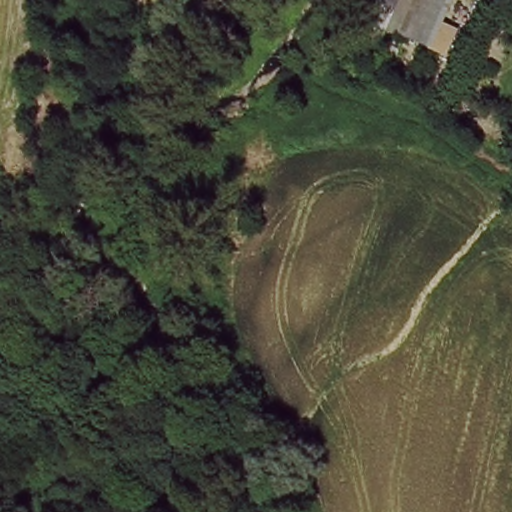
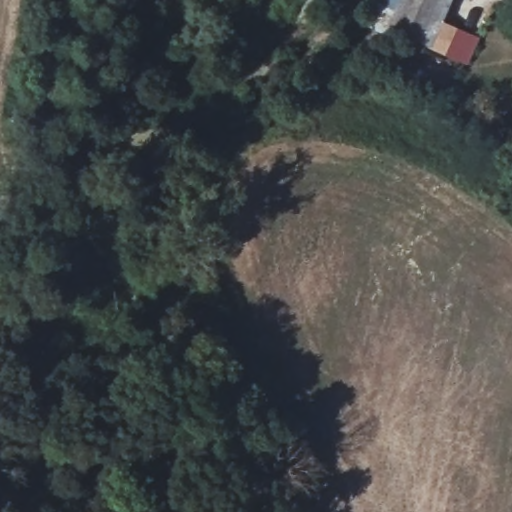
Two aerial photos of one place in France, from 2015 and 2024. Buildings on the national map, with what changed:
unchanged [(385,26),(398,0),(448,0),(425,47),(385,26)]

